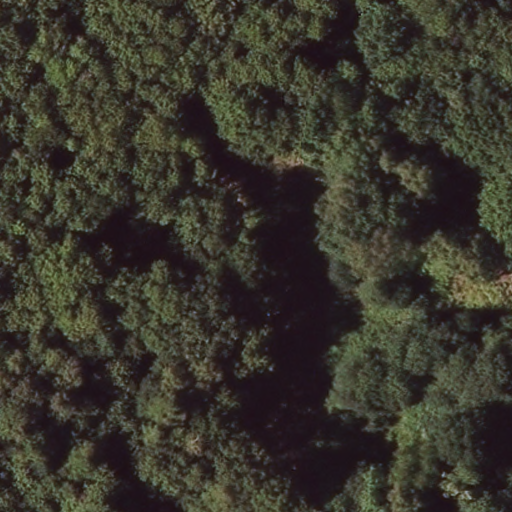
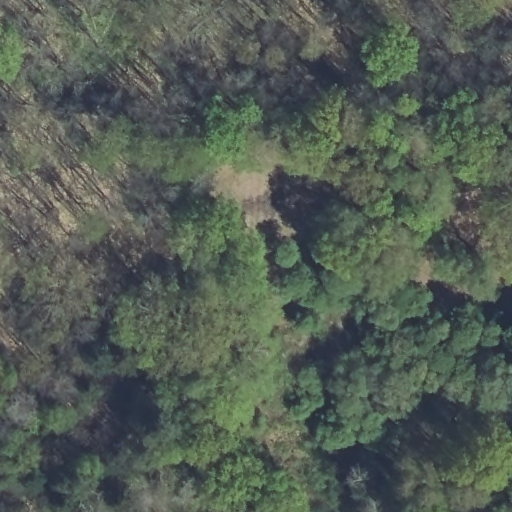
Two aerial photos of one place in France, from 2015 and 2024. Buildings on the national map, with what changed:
[]

